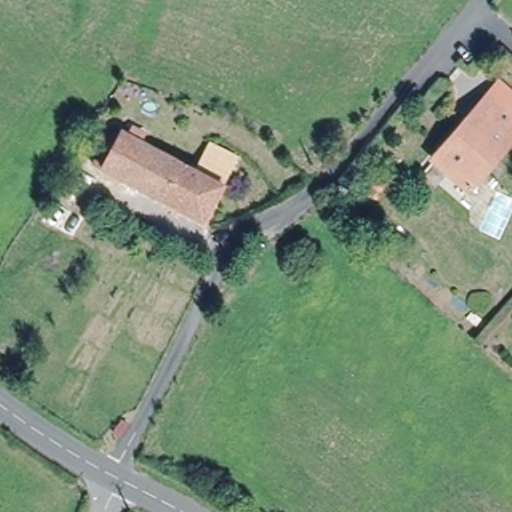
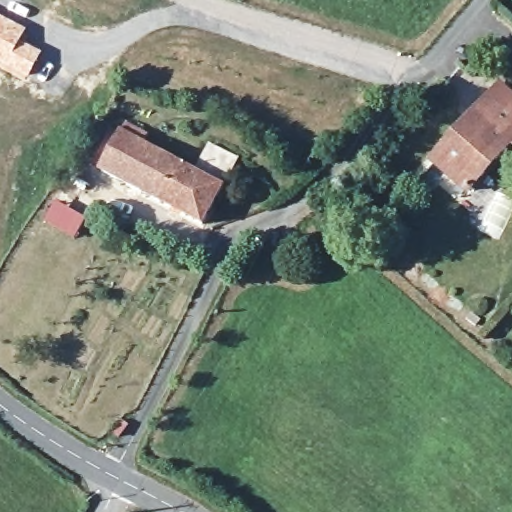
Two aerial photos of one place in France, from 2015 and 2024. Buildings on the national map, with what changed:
new [(29,34),(22,46),(39,54),(29,76),(0,61),(2,56),(0,55),(0,19),(24,31),(29,34)]
unchanged [(464,191),(427,160),(483,95),(495,83),(512,98),(512,101),(502,112),(512,121),(512,145),(507,141),(492,160),(480,173),(464,191)]
unchanged [(197,172),(212,145),(238,159),(223,187),(203,225),(102,171),(93,165),(112,130),(122,135),(123,132),(197,172)]
unchanged [(382,183),(380,189),(358,181),(365,164),(386,172),(386,173),(382,183)]

